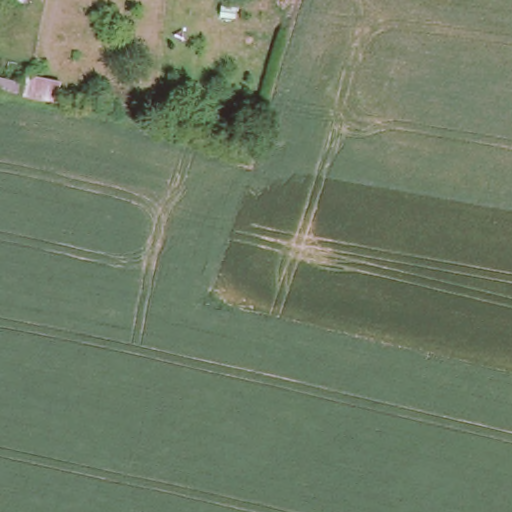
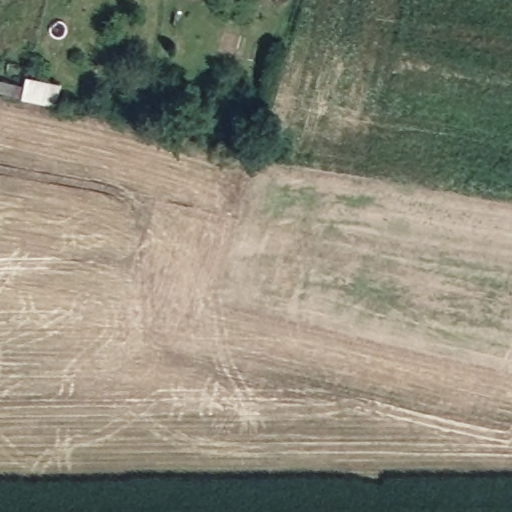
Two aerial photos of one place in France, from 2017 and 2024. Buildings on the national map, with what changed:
unchanged [(19,97),(0,93),(0,77),(22,82),(19,97)]

